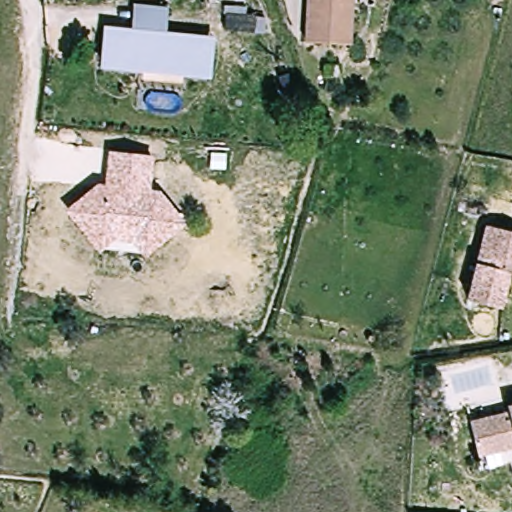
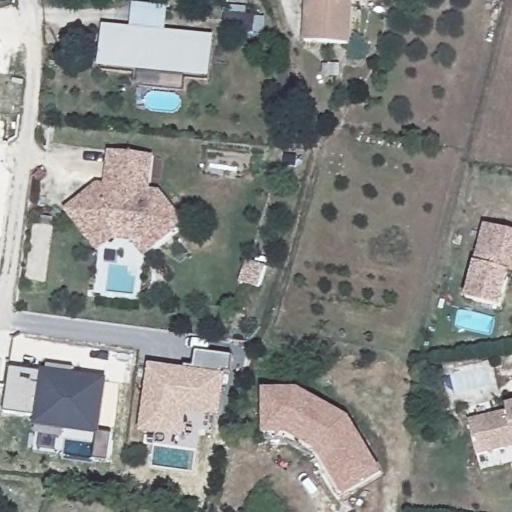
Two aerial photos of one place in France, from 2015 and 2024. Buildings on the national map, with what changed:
unchanged [(242,0),(247,13),(224,23),(218,9),(241,0),(242,0)]
unchanged [(307,40),(309,0),(352,0),(350,42),(307,40)]
unchanged [(212,45),(209,72),(102,61),(105,34),(106,25),(134,28),(137,6),(167,9),(165,32),(213,37),(212,45)]
new [(3,42),(0,59),(0,42),(3,42)]
unchanged [(155,156),(152,189),(163,191),(186,224),(146,258),(132,242),(114,239),(99,253),(65,210),(98,183),(105,185),(109,151),(155,156)]
unchanged [(490,232),(512,238),(512,282),(505,313),(471,306),(490,232)]
new [(186,366),(196,367),(198,351),(233,355),(231,372),(223,370),(223,374),(226,374),(221,417),(188,414),(185,438),(141,433),(150,364),(187,368),(186,366)]
new [(45,373),(40,414),(6,410),(11,369),(45,373)]
new [(113,434),(110,462),(95,459),(97,435),(33,425),(35,413),(40,414),(45,373),(42,372),(42,369),(108,378),(100,432),(113,434)]
new [(304,392),(353,422),(383,477),(340,500),(317,457),(290,441),(269,440),(270,392),(304,392)]
unchanged [(485,459),(476,423),(512,414),(512,452),(485,459)]

